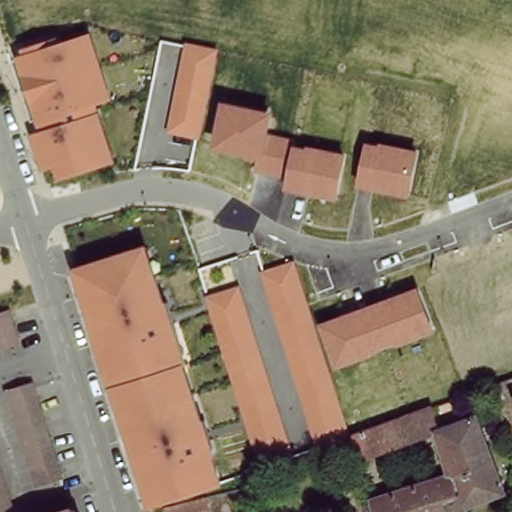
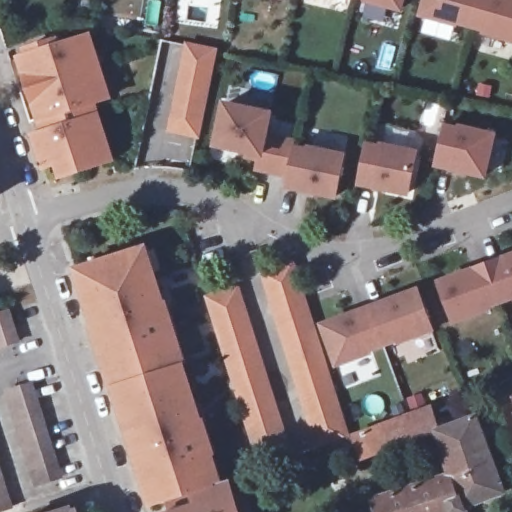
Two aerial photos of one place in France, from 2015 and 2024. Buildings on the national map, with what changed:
new [(402,12),(353,0),(405,0),(402,12)]
new [(424,0),(512,0),(512,43),(481,35),(481,32),(420,17),(424,0)]
unchanged [(100,106),(118,162),(61,182),(56,168),(43,172),(32,133),(40,130),(18,56),(25,53),(23,47),(62,35),(65,42),(94,32),(116,98),(100,106)]
unchanged [(201,141),(168,134),(186,42),(219,49),(201,141)]
unchanged [(286,179),(259,174),(261,160),(245,157),(246,152),(213,146),(223,101),(273,112),(269,134),(297,140),(296,144),(309,147),(310,144),(347,153),(338,200),(286,189),(286,179)]
new [(487,180),(435,168),(445,122),(499,135),(487,180)]
unchanged [(367,144),(380,146),(380,142),(419,151),(409,197),(358,186),(367,144)]
unchanged [(225,483),(149,505),(74,267),(151,244),(225,483)]
new [(452,323),(437,280),(512,253),(512,302),(452,323)]
unchanged [(353,441),(318,452),(261,271),(295,260),(353,441)]
unchanged [(295,456),(259,466),(207,297),(243,287),(295,456)]
unchanged [(417,288),(434,331),(337,367),(321,325),(417,288)]
unchanged [(0,312),(13,308),(22,344),(0,350),(0,312)]
unchanged [(5,388),(32,381),(60,475),(33,483),(5,388)]
unchanged [(453,512),(372,512),(369,501),(379,497),(377,492),(445,469),(454,466),(446,431),(439,432),(437,427),(365,452),(359,431),(437,403),(444,425),(480,412),(509,487),(469,502),(470,506),(472,512),(456,512),(456,511),(453,512)]
unchanged [(0,512),(0,462),(15,512),(0,512)]
new [(225,482),(234,480),(243,512),(164,512),(195,502),(192,492),(225,483),(225,482)]
demolished [(204,496),(208,512),(165,512),(164,506),(204,496)]
unchanged [(74,512),(56,512),(72,507),(74,512)]

